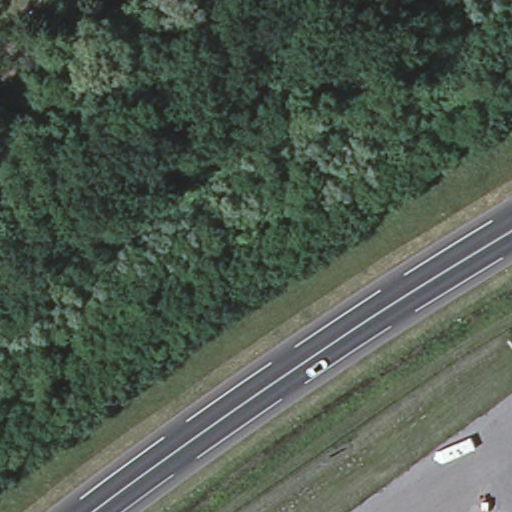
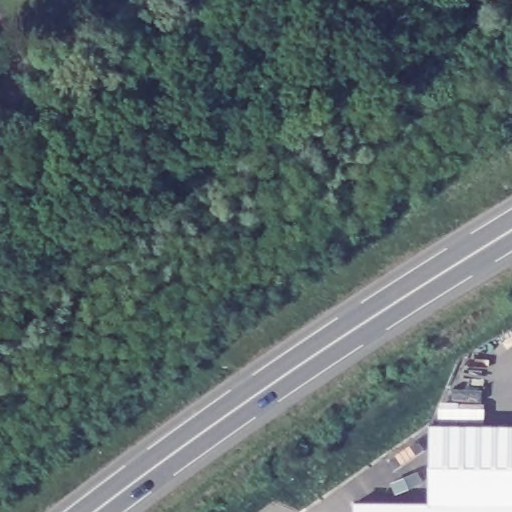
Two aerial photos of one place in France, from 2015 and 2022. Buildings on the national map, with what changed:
new [(355,501),(427,502),(429,425),(439,425),(439,402),(484,402),(484,426),(512,426),(512,512),(355,512),(355,501)]

